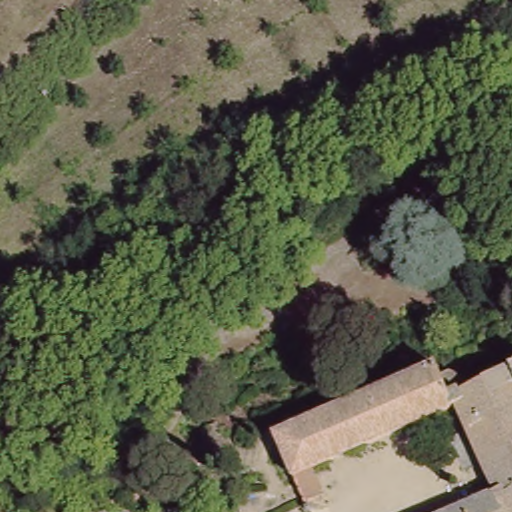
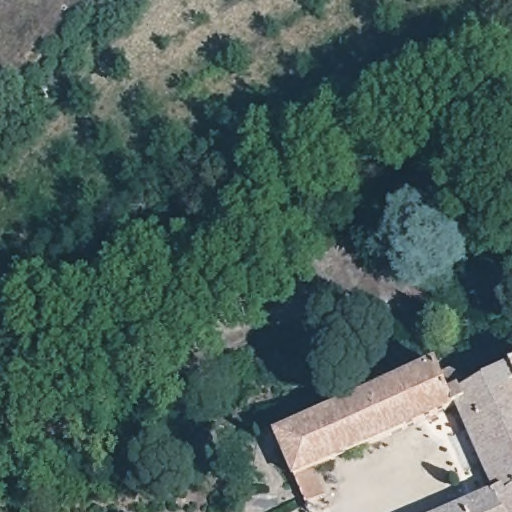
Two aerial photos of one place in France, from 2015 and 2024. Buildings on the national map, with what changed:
unchanged [(275,436),(436,365),(441,375),(450,371),(465,376),(471,388),(512,369),(512,512),(446,512),(494,491),(458,411),(317,474),(325,495),(305,503),(275,436)]

